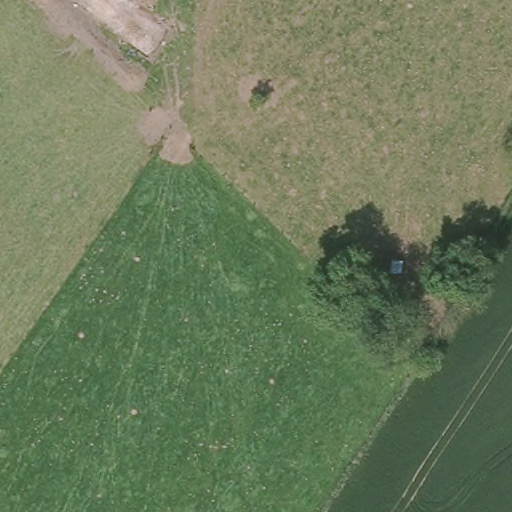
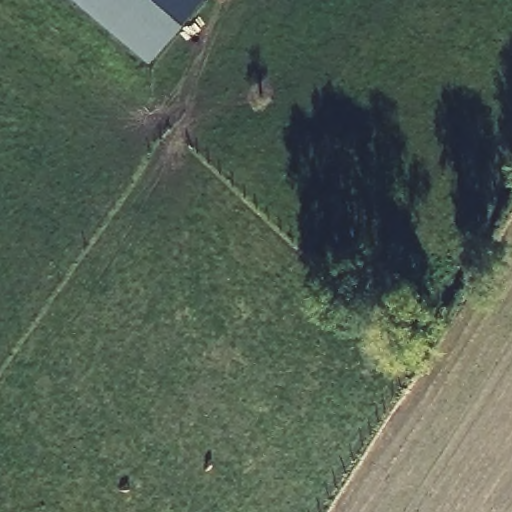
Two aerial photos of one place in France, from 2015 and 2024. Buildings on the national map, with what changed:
new [(74,0),(197,0),(146,58),(74,0)]

